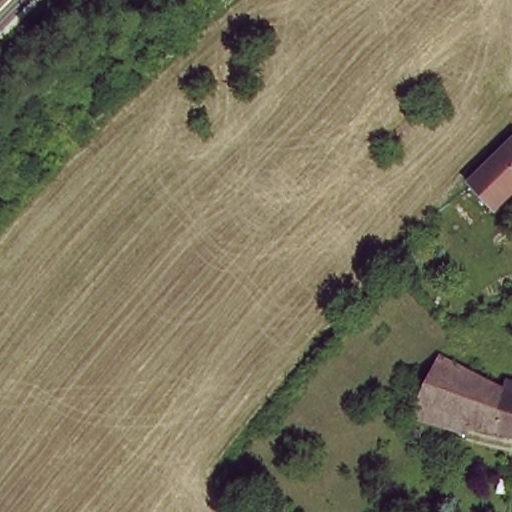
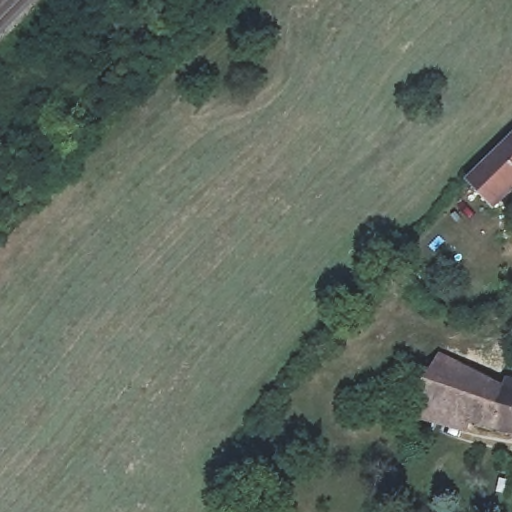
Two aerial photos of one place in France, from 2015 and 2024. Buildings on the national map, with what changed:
unchanged [(489,214),(465,189),(512,141),(512,192),(489,214)]
unchanged [(505,435),(428,407),(447,364),(478,373),(493,390),(512,396),(512,437),(505,435)]

